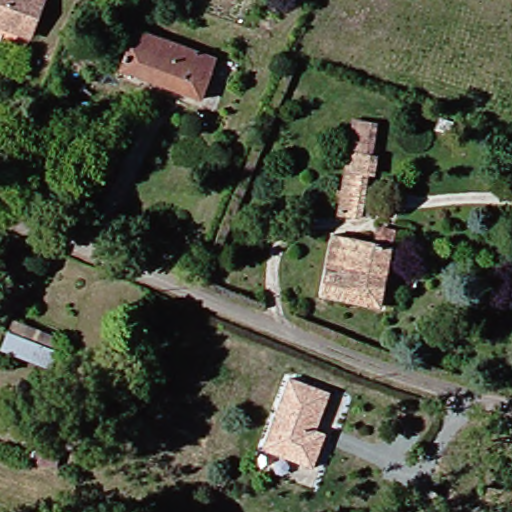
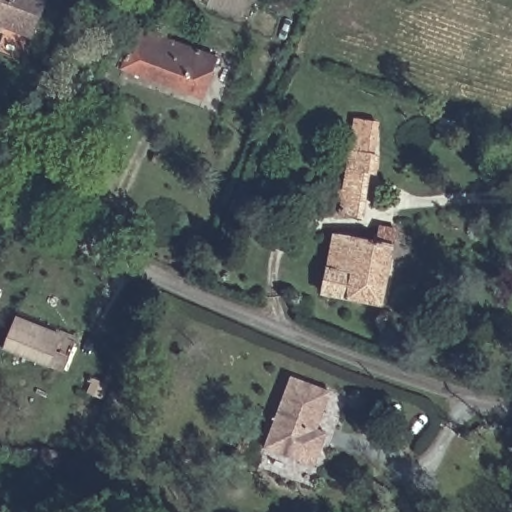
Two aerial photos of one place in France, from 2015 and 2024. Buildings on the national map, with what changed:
unchanged [(0,26),(0,0),(36,0),(26,34),(0,26)]
unchanged [(195,96),(118,74),(133,31),(210,55),(195,96)]
unchanged [(95,131),(84,153),(49,134),(59,114),(95,131)]
unchanged [(354,172),(347,209),(343,208),(341,218),(331,214),(345,153),(352,119),(371,124),(364,157),(360,173),(354,172)]
unchanged [(371,243),(374,229),(389,233),(373,309),(317,295),(332,235),(371,243)]
unchanged [(61,340),(48,372),(0,350),(0,337),(8,318),(61,340)]
unchanged [(323,388),(309,426),(320,429),(310,463),(259,446),(282,375),(323,388)]
unchanged [(58,439),(50,456),(31,446),(39,431),(58,439)]

